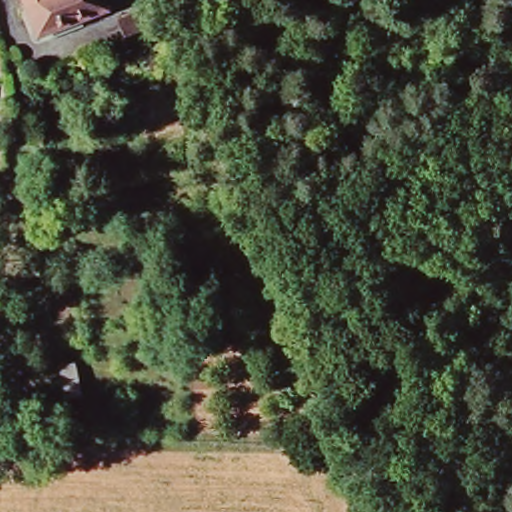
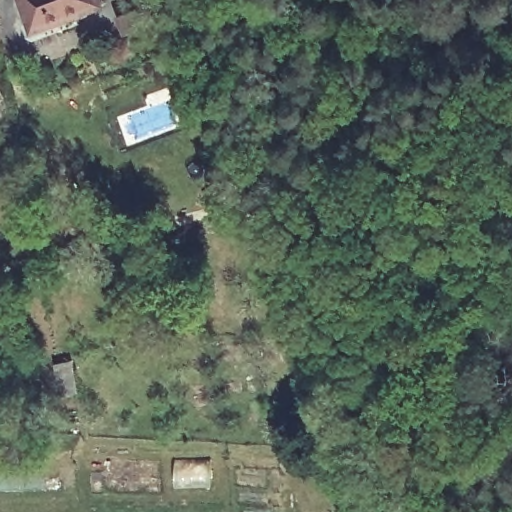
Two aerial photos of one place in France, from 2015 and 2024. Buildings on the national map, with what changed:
unchanged [(105,5),(38,34),(23,0),(103,0),(105,5)]
unchanged [(134,88),(125,68),(160,55),(169,75),(134,88)]
unchanged [(67,392),(47,396),(42,366),(61,363),(67,392)]

